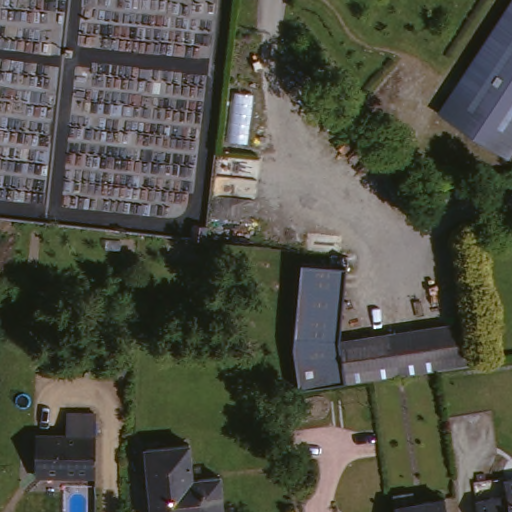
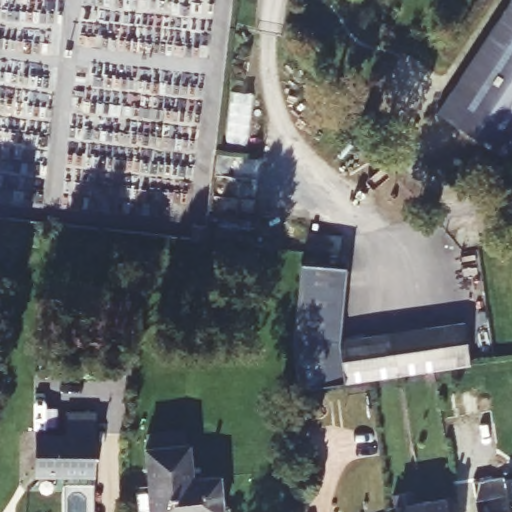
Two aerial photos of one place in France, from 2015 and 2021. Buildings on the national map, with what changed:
unchanged [(512,0),(512,154),(505,165),(433,118),(511,0),(512,0)]
unchanged [(27,238),(25,249),(9,245),(11,234),(27,238)]
unchanged [(333,347),(338,381),(298,387),(292,347),(302,263),(347,268),(340,346),(333,347)]
unchanged [(340,388),(338,381),(333,347),(340,346),(457,328),(465,369),(436,373),(371,383),(340,388)]
unchanged [(96,428),(95,483),(42,483),(36,475),(37,448),(66,448),(66,429),(96,428)]
unchanged [(142,453),(187,450),(191,483),(216,482),(219,512),(149,512),(142,453)]
unchanged [(471,500),(512,494),(512,512),(472,512),(471,500)]
unchanged [(442,502),(443,512),(398,512),(398,509),(442,502)]

